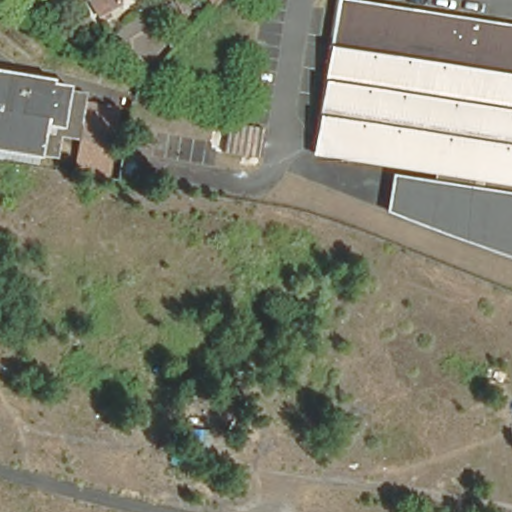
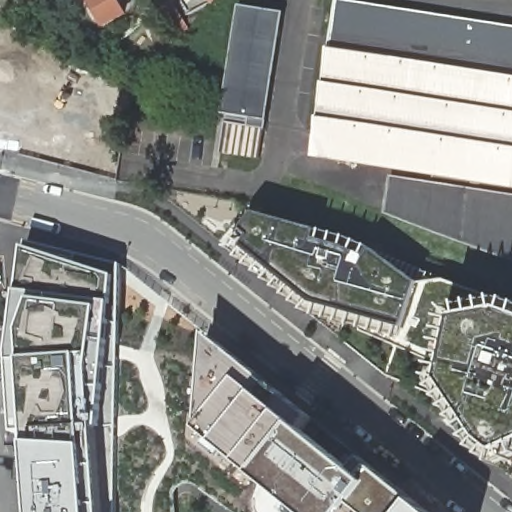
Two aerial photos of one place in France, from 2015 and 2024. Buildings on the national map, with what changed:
unchanged [(116,4),(104,11),(107,17),(97,22),(84,0),(113,0),(116,4)]
unchanged [(337,0),(343,0),(502,25),(512,26),(512,185),(422,170),(323,155),(313,153),(337,0)]
unchanged [(173,4),(187,27),(174,34),(161,11),(173,4)]
new [(267,121),(221,114),(238,4),(284,12),(267,121)]
demolished [(23,79),(73,88),(72,91),(90,94),(89,103),(82,142),(65,139),(61,163),(0,153),(0,72),(24,75),(23,79)]
unchanged [(264,130),(260,159),(222,154),(227,125),(264,130)]
unchanged [(491,245),(393,209),(398,184),(419,188),(422,170),(512,185),(512,253),(491,245)]
new [(256,214),(348,237),(373,249),(421,283),(445,281),(502,301),(512,305),(512,478),(497,467),(461,425),(442,400),(388,376),(305,313),(226,250),(236,239),(256,214)]
new [(119,455),(118,512),(36,512),(32,445),(34,445),(32,430),(19,433),(14,353),(22,291),(24,291),(28,247),(27,241),(121,264),(119,455)]
new [(246,465),(219,444),(199,432),(209,334),(312,414),(302,427),(356,471),(365,459),(377,469),(421,505),(430,512),(302,512),(261,478),(246,465)]

